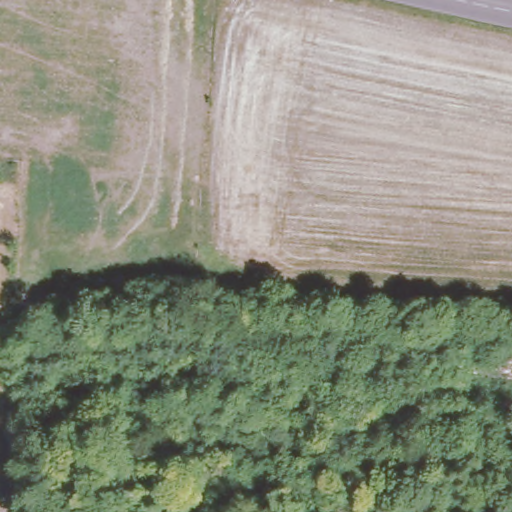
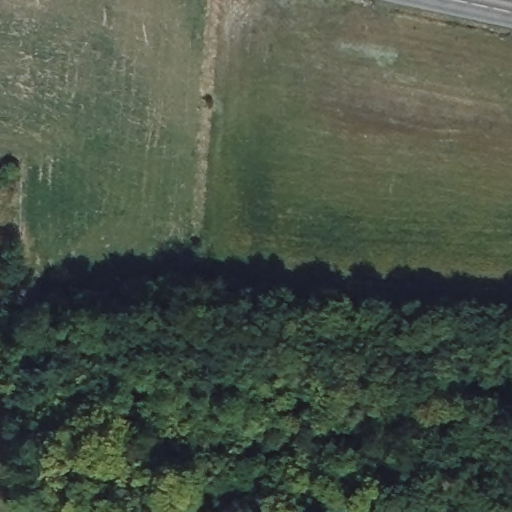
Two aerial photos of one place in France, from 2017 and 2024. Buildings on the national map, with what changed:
unchanged [(130,439),(154,447),(138,496),(114,490),(130,439)]

